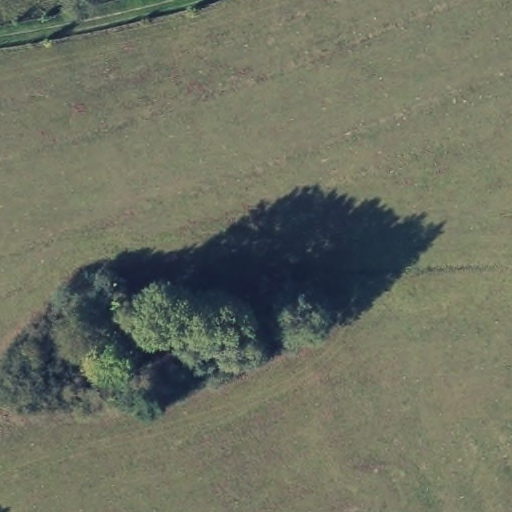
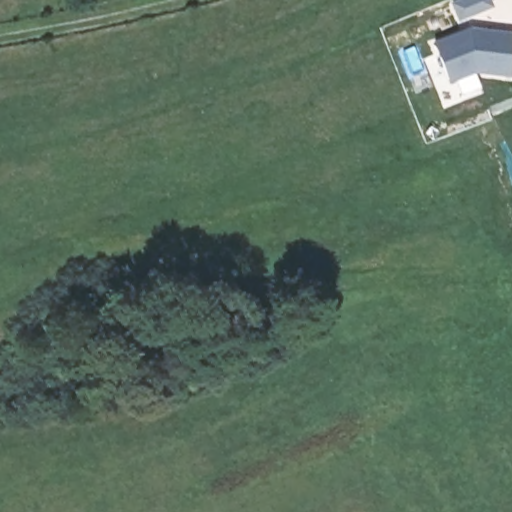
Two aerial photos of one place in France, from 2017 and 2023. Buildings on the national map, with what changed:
new [(476,73),(449,83),(435,44),(471,29),(512,34),(512,72),(512,76),(476,73)]

